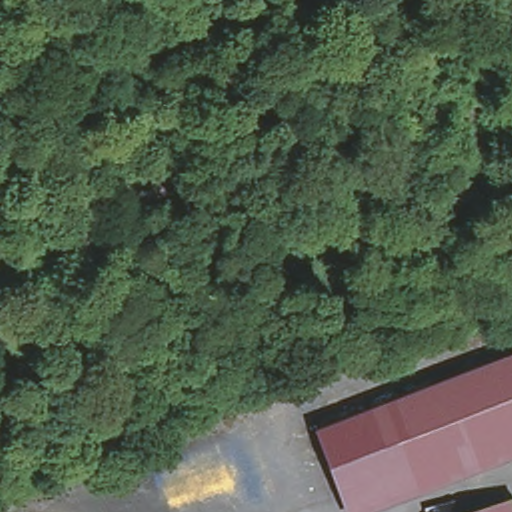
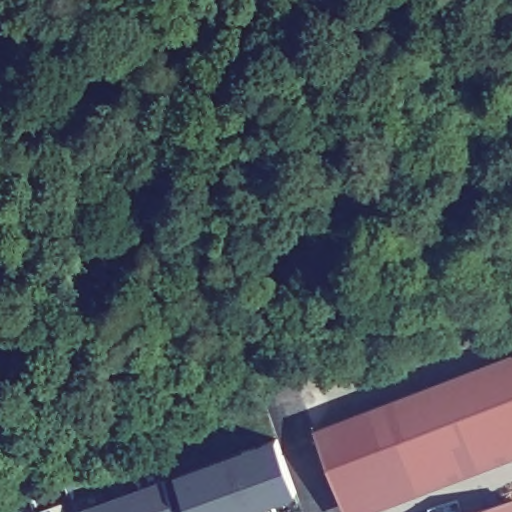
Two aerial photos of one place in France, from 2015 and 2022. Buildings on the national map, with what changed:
unchanged [(322,428),(512,357),(512,438),(347,498),(322,428)]
new [(246,512),(190,512),(175,473),(275,436),(297,493),(246,512)]
new [(81,512),(80,507),(165,476),(177,512),(81,512)]
unchanged [(512,512),(472,512),(512,500),(512,512)]

